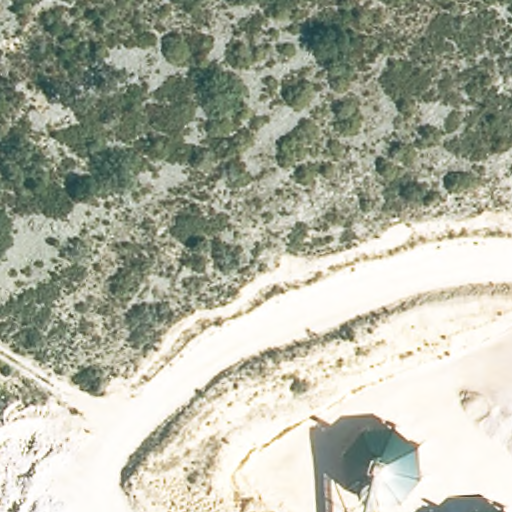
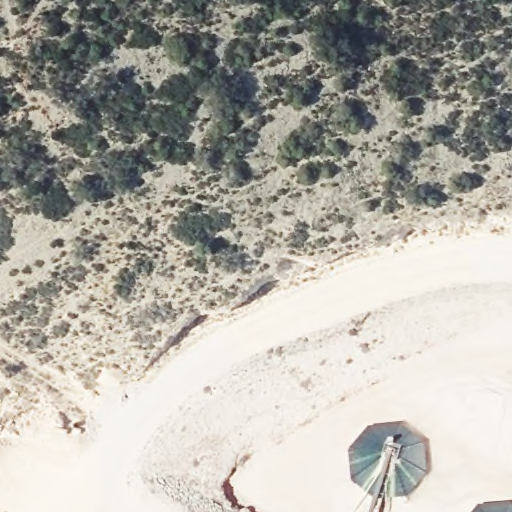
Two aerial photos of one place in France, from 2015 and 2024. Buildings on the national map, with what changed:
unchanged [(418,447),(422,482),(402,507),(368,508),(347,487),(344,456),(364,434),(393,431),(418,447)]
unchanged [(492,512),(502,511),(502,512),(492,512)]

